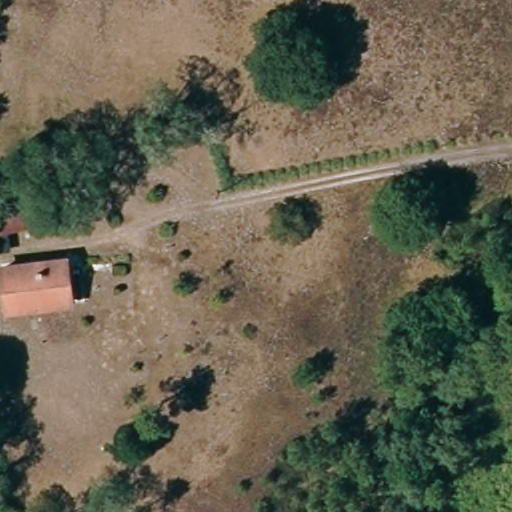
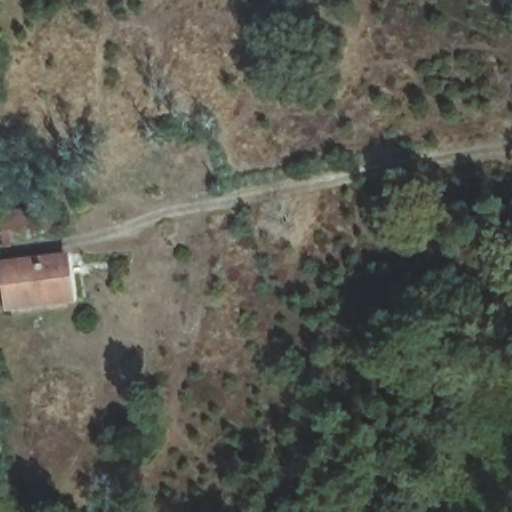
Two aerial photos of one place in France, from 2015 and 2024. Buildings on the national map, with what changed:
unchanged [(0,290),(0,261),(69,249),(77,297),(2,311),(0,290)]

